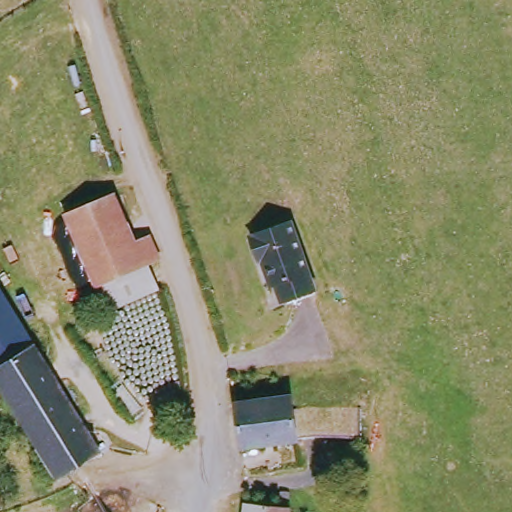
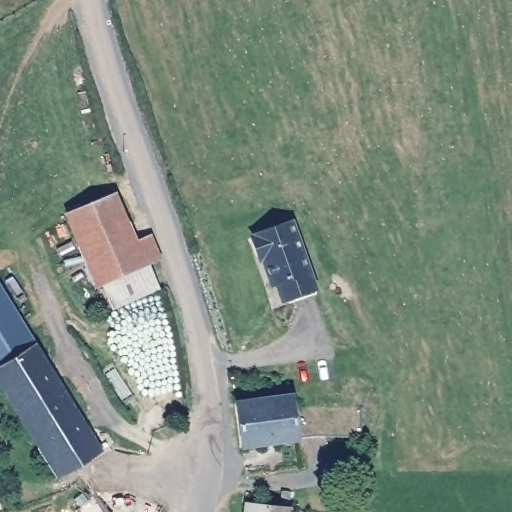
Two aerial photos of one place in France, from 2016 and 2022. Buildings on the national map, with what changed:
unchanged [(155,261),(150,263),(142,267),(153,294),(117,311),(104,289),(100,290),(66,214),(112,191),(132,235),(145,230),(155,261)]
unchanged [(282,223),(312,289),(310,289),(286,298),(280,287),(275,289),(260,255),(251,257),(242,240),(282,223)]
unchanged [(0,371),(0,291),(34,350),(0,371)]
unchanged [(0,371),(34,350),(86,434),(95,431),(105,436),(112,446),(53,477),(0,382),(0,371)]
unchanged [(290,401),(289,424),(299,426),(297,435),(292,435),(290,447),(235,447),(235,402),(290,401)]
unchanged [(242,512),(242,507),(284,510),(284,512),(242,512)]

